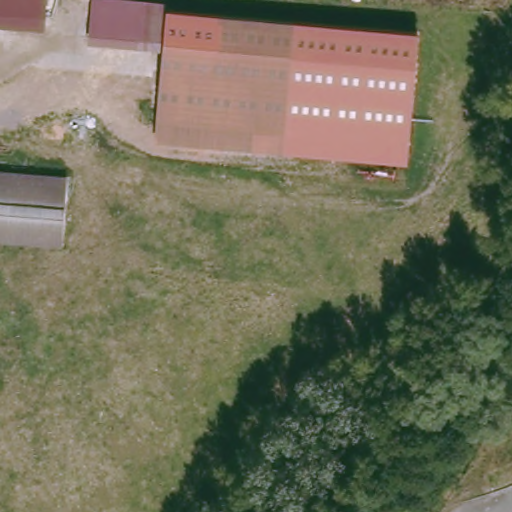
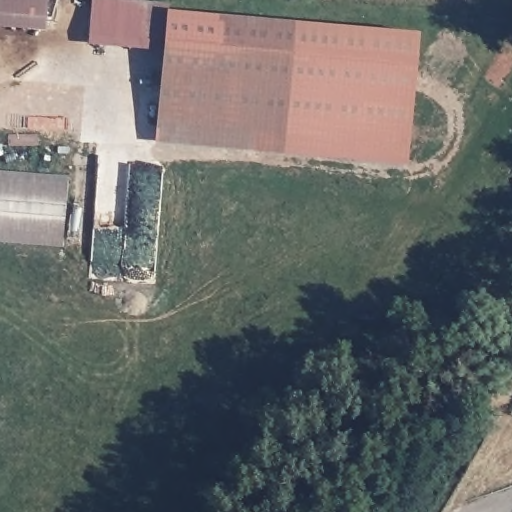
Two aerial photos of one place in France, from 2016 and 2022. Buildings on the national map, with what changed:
unchanged [(47,30),(0,26),(0,0),(50,0),(47,30)]
unchanged [(170,11),(166,51),(87,45),(93,0),(129,0),(170,4),(170,11)]
unchanged [(158,139),(166,51),(170,11),(416,32),(407,161),(158,139)]
unchanged [(0,169),(67,175),(62,239),(0,233),(0,169)]

